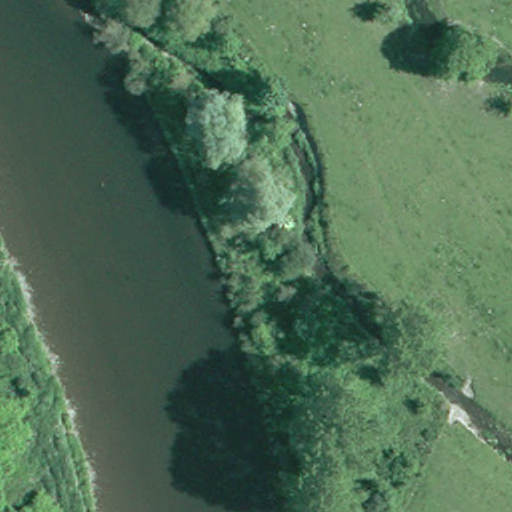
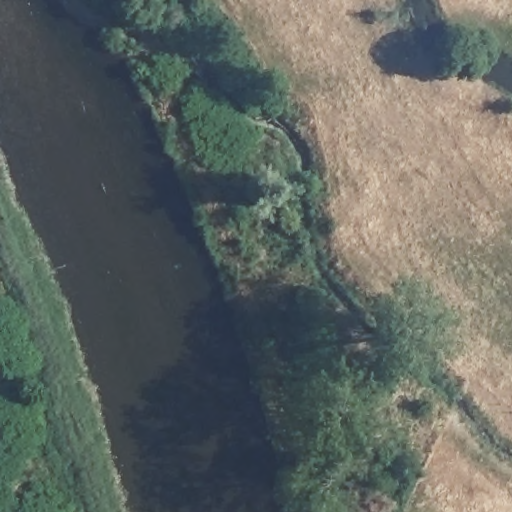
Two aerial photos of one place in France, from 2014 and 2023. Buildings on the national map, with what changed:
unchanged [(441,101),(427,93),(434,81),(446,90),(441,101)]

